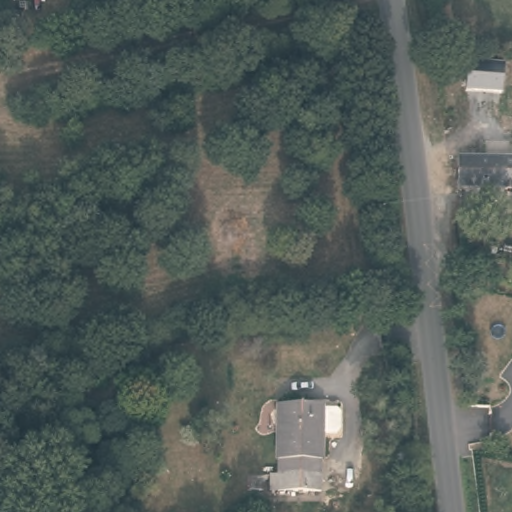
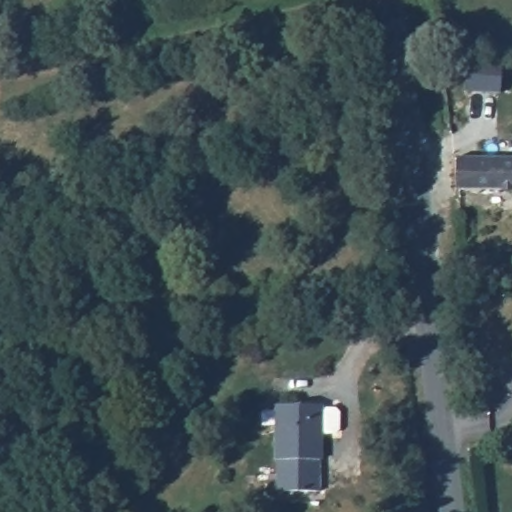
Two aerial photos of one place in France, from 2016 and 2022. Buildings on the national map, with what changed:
unchanged [(460,162),(508,161),(509,130),(512,129),(512,194),(461,194),(460,162)]
unchanged [(267,486),(276,485),(276,415),(321,416),(321,420),(336,420),(339,423),(339,440),(336,443),(321,444),(322,470),(318,470),(317,500),(266,500),(267,486)]

